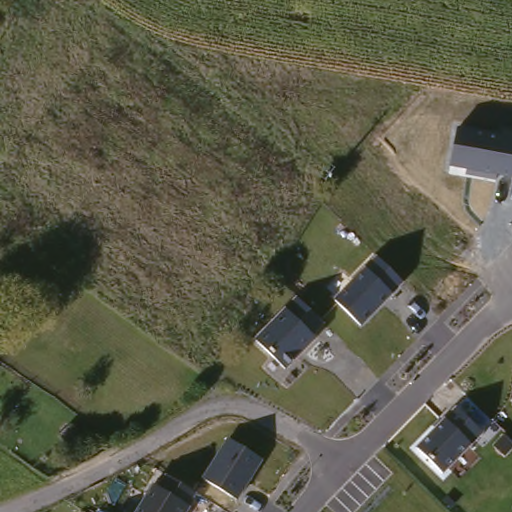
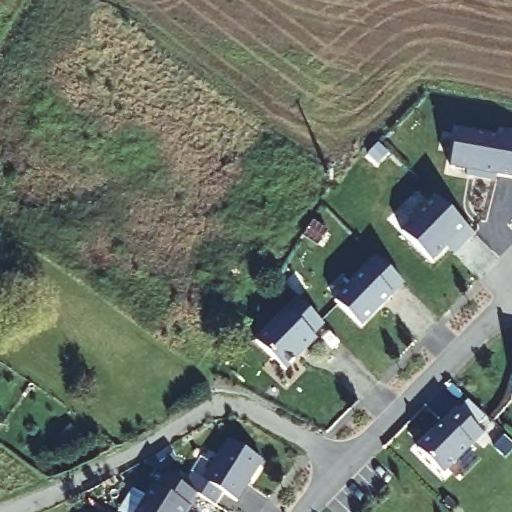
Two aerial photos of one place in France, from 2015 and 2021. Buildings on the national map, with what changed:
unchanged [(450,168),(457,130),(512,140),(512,177),(450,168)]
new [(445,247),(430,261),(400,232),(435,196),(472,233),(460,245),(452,254),(445,247)]
unchanged [(360,328),(335,302),(375,258),(402,284),(360,328)]
unchanged [(285,370),(255,340),(295,298),(325,326),(285,370)]
unchanged [(443,473),(415,449),(456,408),(483,434),(443,473)]
unchanged [(237,501),(200,479),(229,436),(265,459),(237,501)]
unchanged [(186,512),(137,512),(162,472),(197,494),(186,512)]

